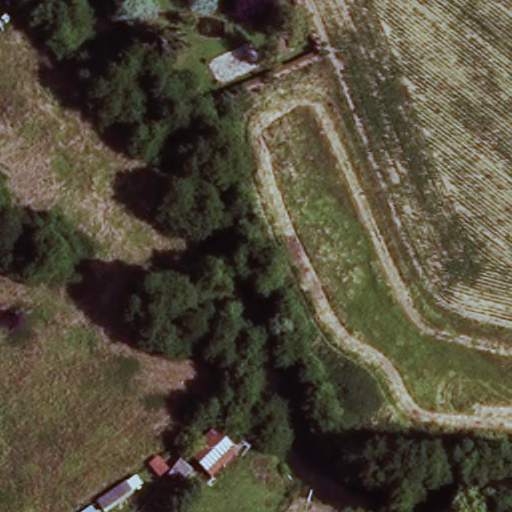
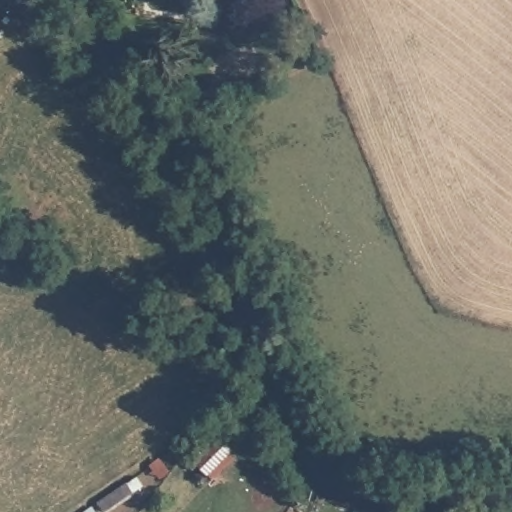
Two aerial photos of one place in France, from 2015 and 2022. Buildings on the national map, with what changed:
unchanged [(198,469),(183,485),(172,471),(189,450),(236,412),(259,442),(212,483),(198,469)]

